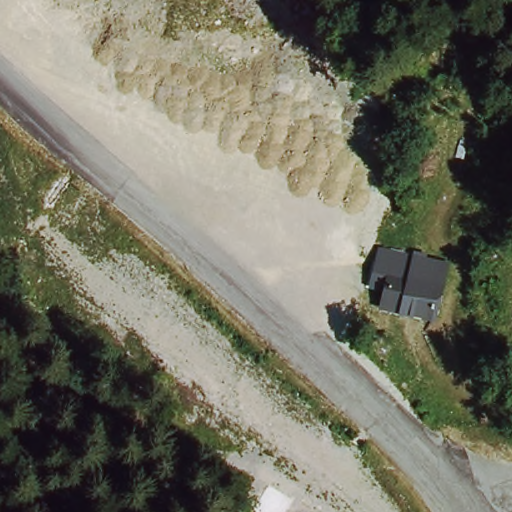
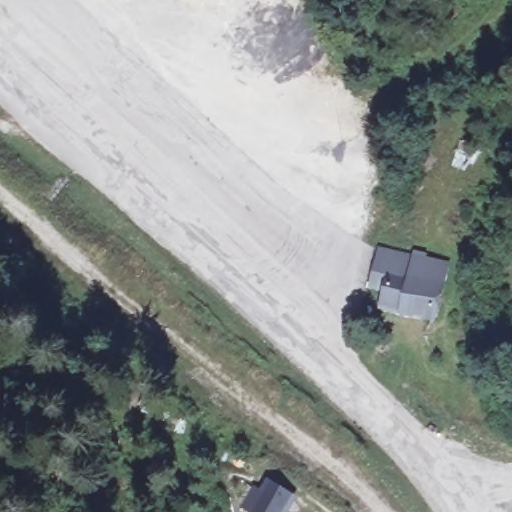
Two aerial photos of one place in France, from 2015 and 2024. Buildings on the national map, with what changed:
unchanged [(438,272),(433,300),(382,288),(386,261),(393,233),(414,236),(410,250),(414,254),(429,258),(429,267),(438,272)]
new [(284,512),(254,512),(242,504),(253,489),(259,493),(267,483),(292,499),(284,512)]

